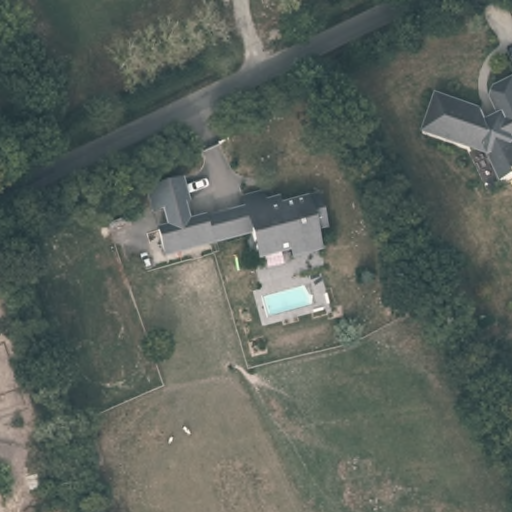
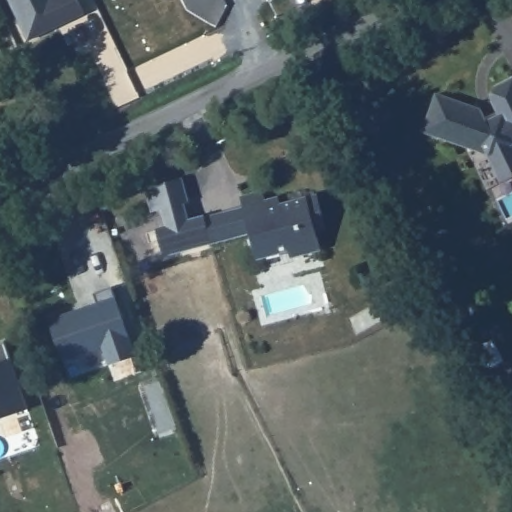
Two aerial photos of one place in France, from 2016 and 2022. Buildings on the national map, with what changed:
new [(10,0),(79,0),(85,14),(65,23),(59,26),(29,40),(10,0)]
unchanged [(485,125),(500,119),(493,104),(495,94),(512,86),(512,178),(497,184),(484,155),(420,133),(433,97),(480,114),(485,125)]
unchanged [(164,207),(153,210),(147,187),(183,177),(188,200),(185,202),(189,217),(167,222),(164,207)]
unchanged [(238,203),(236,197),(260,190),(264,199),(275,195),(278,206),(310,198),(317,230),(308,235),(313,253),(285,260),(281,253),(253,259),(245,234),(238,203)]
unchanged [(238,203),(245,234),(207,244),(200,214),(238,203)]
unchanged [(160,255),(152,226),(200,214),(207,244),(160,255)]
new [(95,304),(92,293),(111,287),(135,354),(109,364),(103,348),(62,359),(49,319),(95,304)]
unchanged [(5,344),(10,360),(26,408),(0,417),(0,345),(5,344)]

